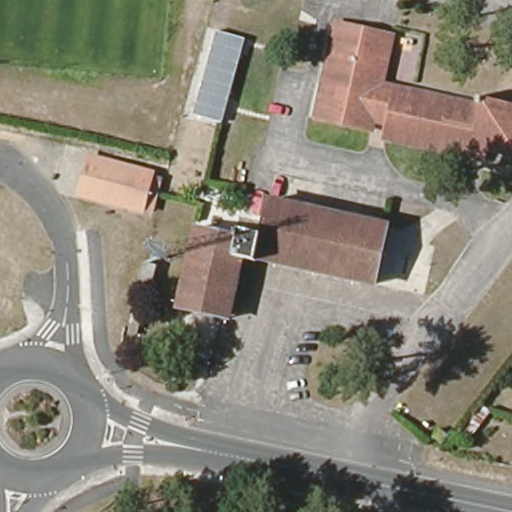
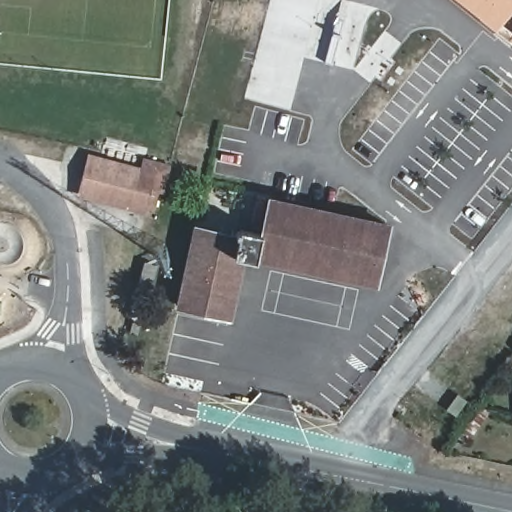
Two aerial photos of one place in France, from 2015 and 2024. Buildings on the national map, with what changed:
new [(501,36),(458,0),(512,0),(512,21),(501,36)]
demolished [(387,82),(484,101),(485,96),(512,104),(512,164),(384,140),(385,129),(377,127),(375,135),(313,120),(333,22),(395,39),(387,82)]
demolished [(194,116),(216,30),(245,37),(223,121),(194,116)]
unchanged [(143,209),(86,195),(93,156),(155,170),(143,209)]
unchanged [(377,284),(255,260),(238,323),(173,310),(196,228),(234,236),(239,225),(262,228),(272,195),(392,222),(377,284)]
new [(479,406),(491,415),(466,446),(454,437),(479,406)]

